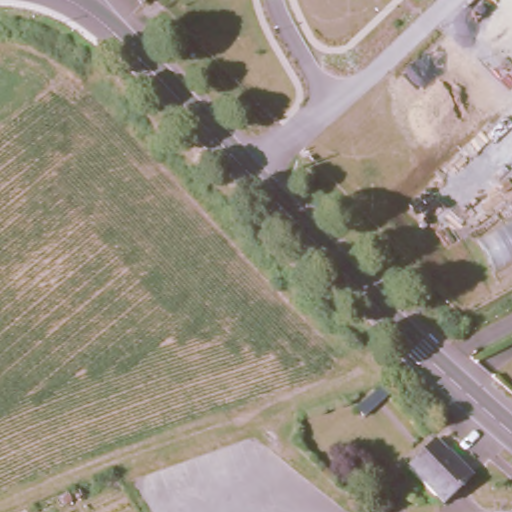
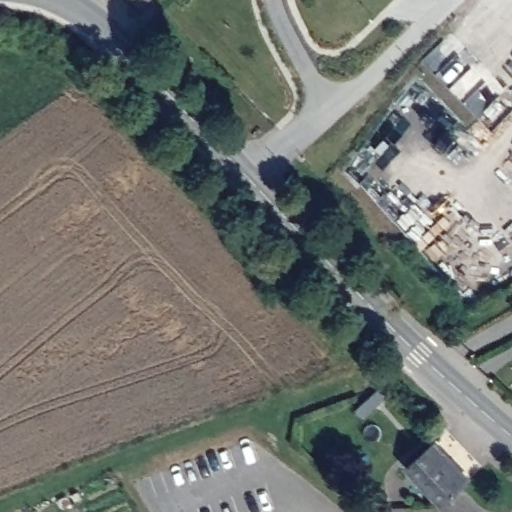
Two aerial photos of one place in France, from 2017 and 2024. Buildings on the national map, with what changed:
unchanged [(133,0),(145,0),(138,7),(133,0)]
unchanged [(361,418),(354,410),(382,385),(389,392),(361,418)]
unchanged [(441,510),(406,473),(434,446),(469,483),(441,510)]

